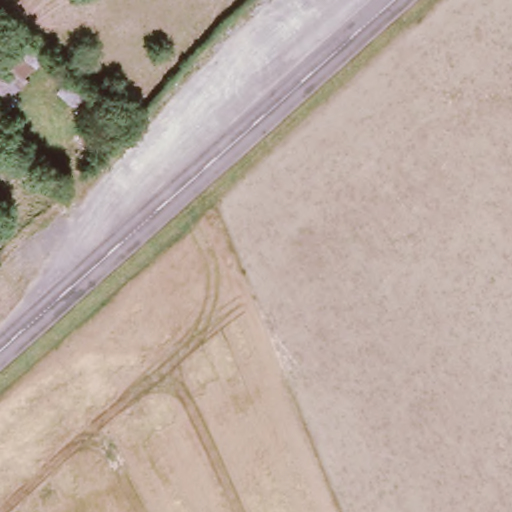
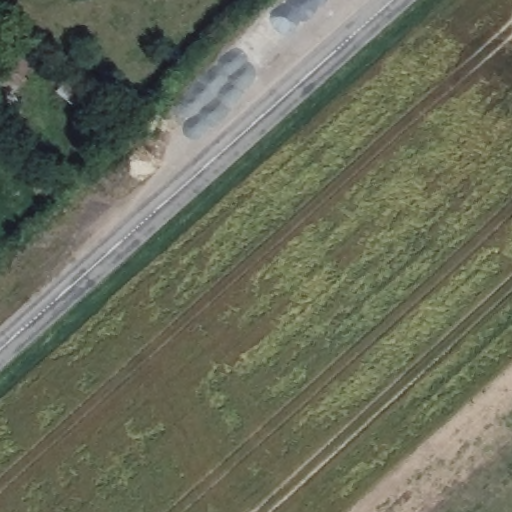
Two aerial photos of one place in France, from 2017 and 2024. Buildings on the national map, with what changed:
unchanged [(9,94),(17,106),(0,120),(0,58),(19,37),(43,59),(9,94)]

